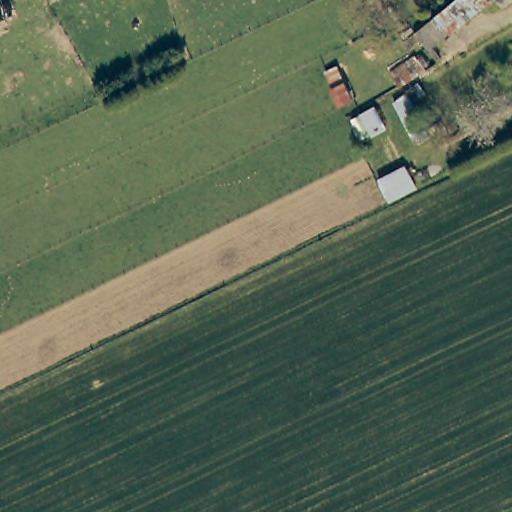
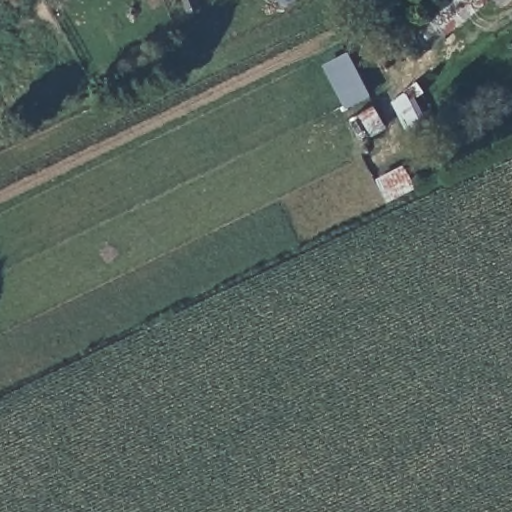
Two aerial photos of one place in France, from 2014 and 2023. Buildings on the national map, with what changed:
unchanged [(476,0),(480,6),(426,51),(413,30),(451,0),(476,0)]
unchanged [(505,0),(512,0),(512,7),(511,8),(505,0)]
new [(348,109),(325,64),(350,52),(372,97),(348,109)]
unchanged [(383,127),(365,136),(356,120),(375,110),(383,127)]
unchanged [(406,167),(415,186),(390,199),(380,180),(406,167)]

